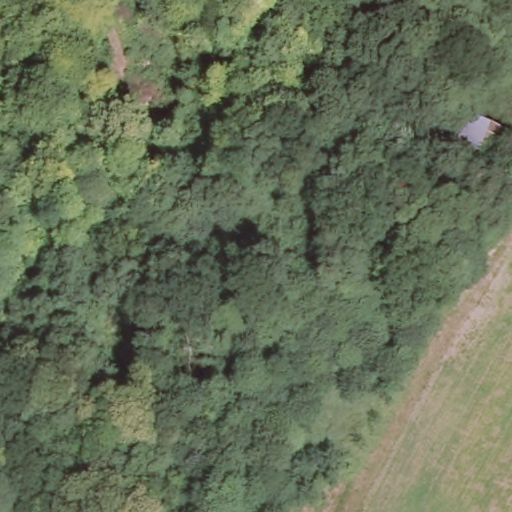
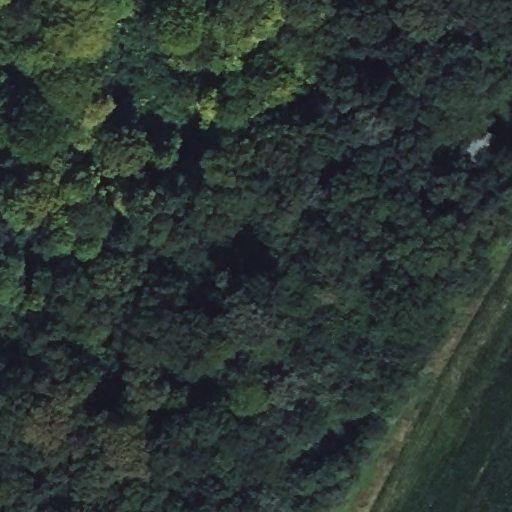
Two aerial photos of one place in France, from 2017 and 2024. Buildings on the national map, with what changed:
unchanged [(512,134),(512,145),(502,171),(432,145),(447,107),(512,134)]

